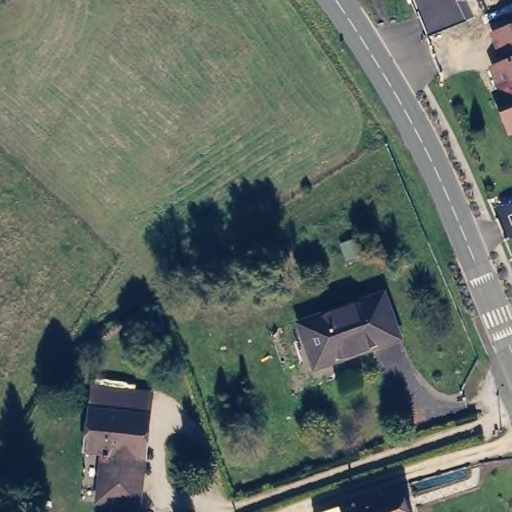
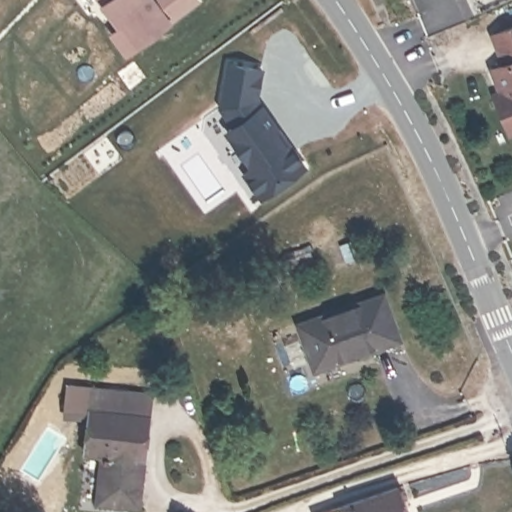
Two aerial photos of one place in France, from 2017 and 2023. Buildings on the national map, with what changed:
new [(113,32),(121,26),(102,0),(195,0),(127,51),(113,32)]
unchanged [(490,69),(503,64),(491,35),(512,26),(512,132),(508,134),(498,109),(493,95),(499,92),(490,69)]
new [(303,165),(261,196),(244,171),(252,166),(226,129),(233,124),(220,105),(228,62),(261,69),(256,97),(276,127),(287,142),(303,165)]
unchanged [(405,342),(324,372),(308,331),(389,298),(405,342)]
unchanged [(92,426),(91,417),(60,414),(64,382),(155,387),(147,430),(92,426)]
unchanged [(104,466),(88,464),(92,426),(147,430),(148,430),(141,512),(101,512),(104,466)]
unchanged [(343,509),(399,487),(409,512),(344,512),(343,509)]

